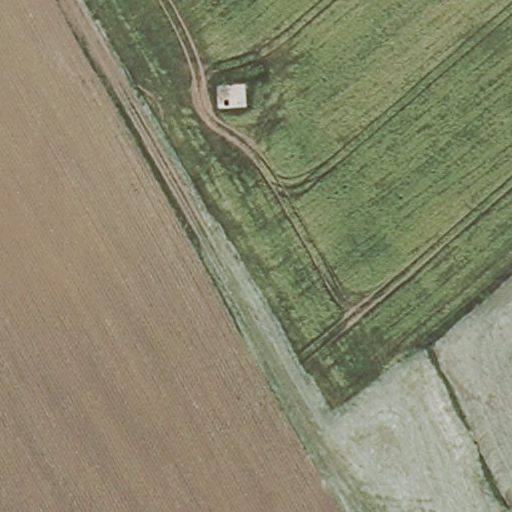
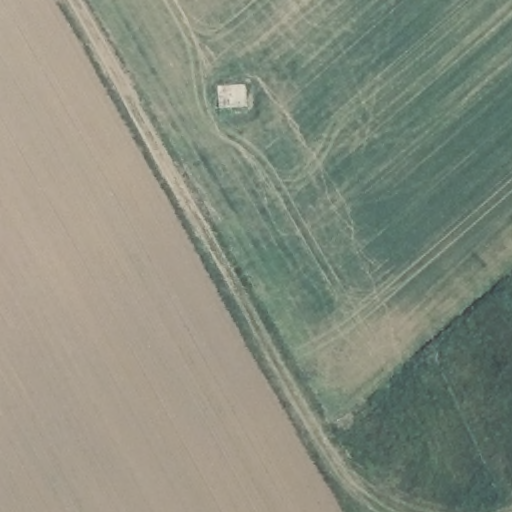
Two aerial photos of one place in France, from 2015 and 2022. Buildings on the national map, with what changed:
unchanged [(245,80),(247,105),(217,107),(218,85),(245,80)]

